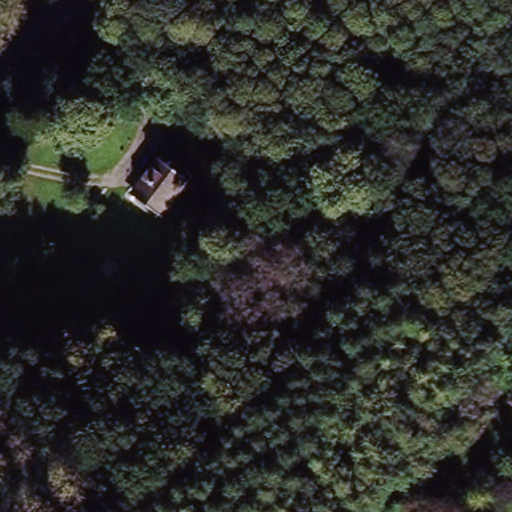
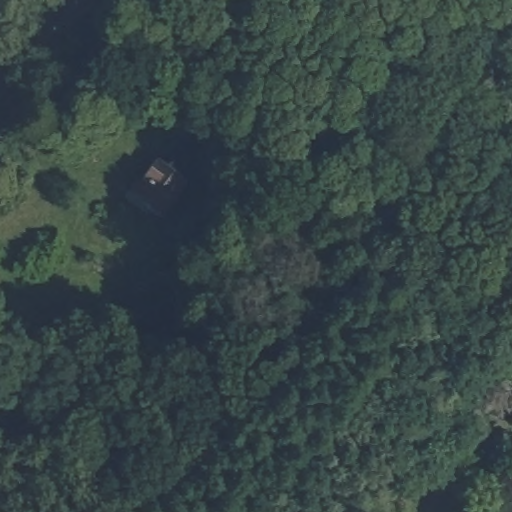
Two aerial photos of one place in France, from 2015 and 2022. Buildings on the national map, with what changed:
unchanged [(167,164),(188,184),(157,218),(135,198),(167,164)]

